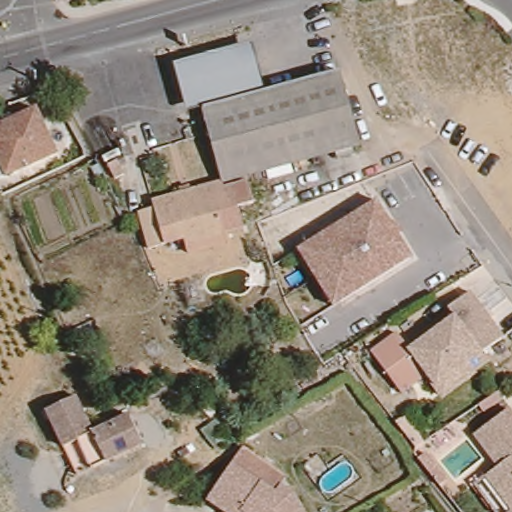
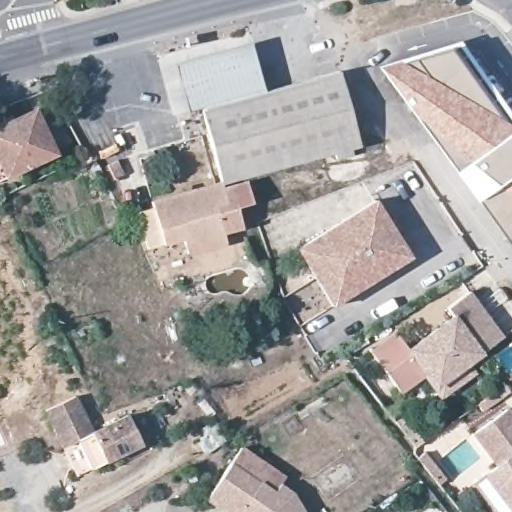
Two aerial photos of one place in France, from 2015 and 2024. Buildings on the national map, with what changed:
new [(512,112),(512,228),(391,62),(460,41),(512,112)]
unchanged [(177,124),(161,73),(233,47),(251,97),(195,117),(177,124)]
unchanged [(218,192),(195,117),(251,97),(329,70),(352,145),(225,190),(218,192)]
unchanged [(35,109),(54,156),(0,179),(0,125),(35,109)]
unchanged [(187,269),(182,258),(148,269),(132,231),(155,224),(150,216),(218,192),(225,190),(225,196),(241,191),(249,212),(232,220),(240,238),(221,245),(226,256),(187,269)]
unchanged [(329,308),(296,252),(372,201),(410,259),(329,308)]
unchanged [(504,334),(481,348),(457,313),(452,316),(447,309),(471,292),(504,334)]
unchanged [(430,401),(417,380),(391,399),(364,361),(361,358),(390,338),(392,343),(400,353),(457,313),(481,348),(452,369),(461,381),(430,401)]
unchanged [(77,398),(95,434),(130,416),(145,445),(80,477),(48,412),(77,398)]
unchanged [(501,465),(481,434),(506,418),(512,414),(512,505),(490,472),(501,465)]
unchanged [(431,468),(425,473),(413,459),(420,455),(431,468)]
unchanged [(232,466),(237,458),(280,486),(292,495),(303,512),(223,512),(208,502),(232,466)]
unchanged [(512,512),(509,512),(512,510),(512,512)]

